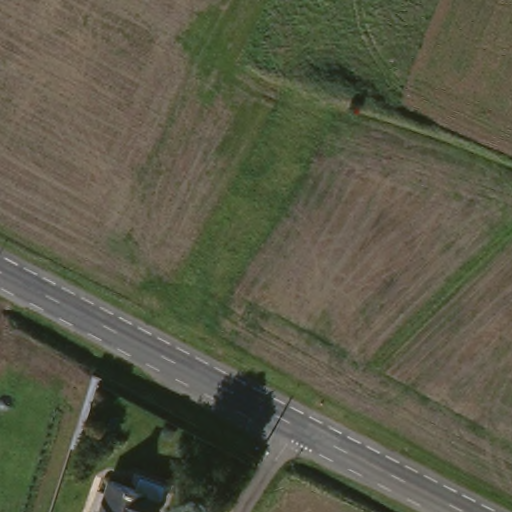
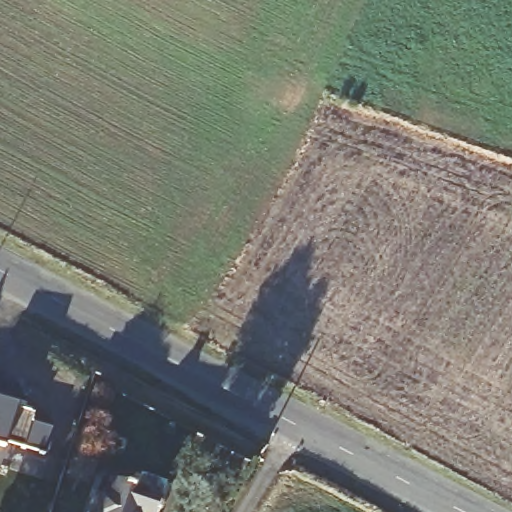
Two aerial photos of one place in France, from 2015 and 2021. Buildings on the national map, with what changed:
new [(0,399),(0,387),(3,388),(0,399)]
new [(17,409),(37,415),(34,424),(53,430),(45,457),(6,444),(4,449),(0,448),(0,401),(18,407),(17,409)]
unchanged [(140,489),(145,474),(170,483),(165,499),(160,512),(101,512),(113,479),(140,489)]

